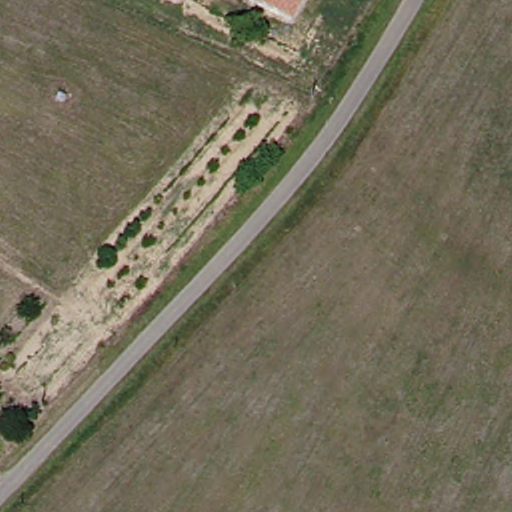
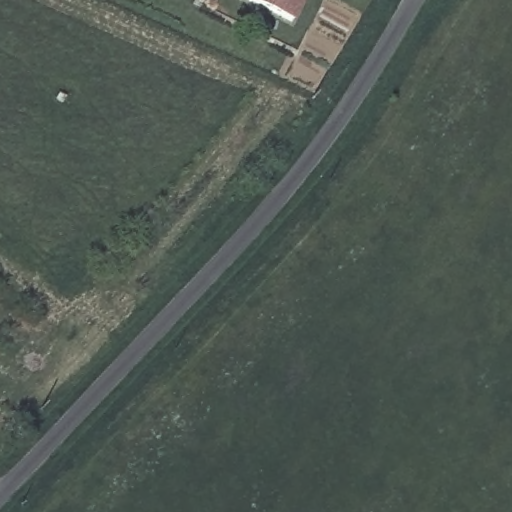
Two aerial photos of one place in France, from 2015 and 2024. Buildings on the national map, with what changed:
unchanged [(226,0),(225,1),(224,0),(226,0)]
unchanged [(248,0),(293,0),(283,18),(248,0)]

